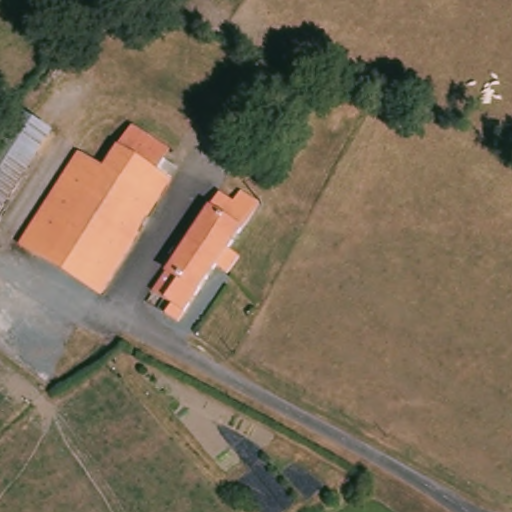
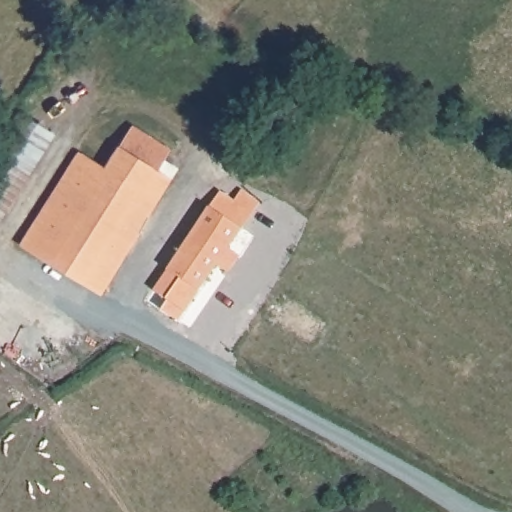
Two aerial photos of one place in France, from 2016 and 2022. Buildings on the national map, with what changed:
unchanged [(24,116),(59,139),(5,222),(0,218),(0,155),(19,123),(24,116)]
unchanged [(100,171),(129,126),(164,150),(152,169),(163,177),(139,214),(124,243),(94,291),(14,243),(71,153),(100,171)]
unchanged [(233,201),(241,190),(259,202),(229,247),(240,255),(228,272),(216,265),(178,321),(165,312),(170,302),(153,291),(219,192),(233,201)]

